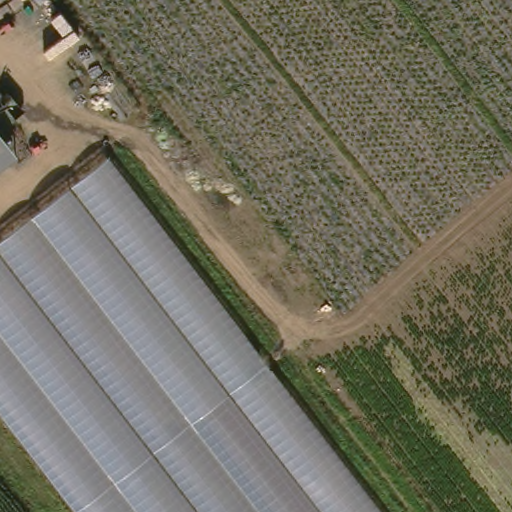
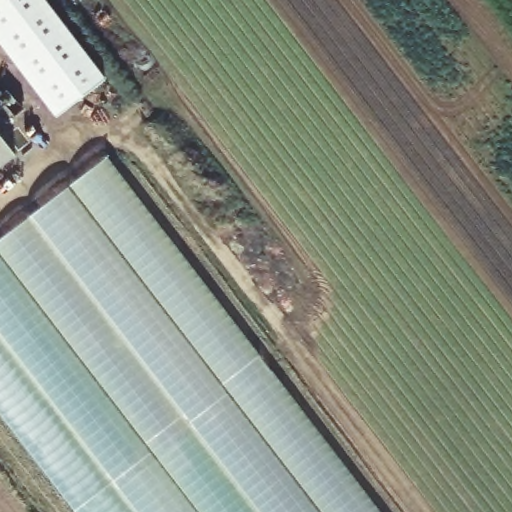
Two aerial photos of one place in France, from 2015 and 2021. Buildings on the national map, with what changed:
new [(60,113),(0,36),(0,0),(40,0),(102,80),(60,113)]
unchanged [(0,171),(0,127),(21,154),(0,171)]
unchanged [(0,409),(0,241),(109,154),(387,512),(82,512),(0,409)]

